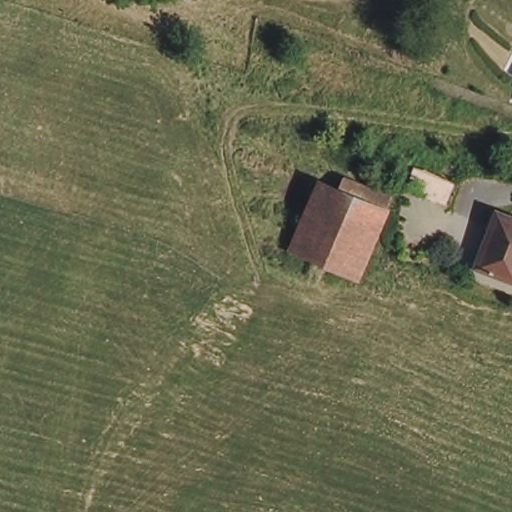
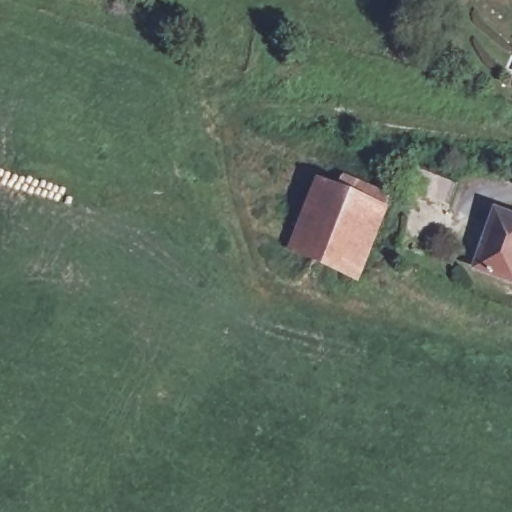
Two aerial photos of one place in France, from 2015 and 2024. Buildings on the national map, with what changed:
unchanged [(417,173),(462,190),(454,206),(410,189),(417,173)]
unchanged [(339,190),(347,176),(387,192),(362,254),(303,229),(321,184),(339,190)]
unchanged [(512,281),(511,284),(473,270),(497,207),(512,213),(512,281)]
unchanged [(303,229),(362,254),(350,281),(340,277),(291,257),(303,229)]

